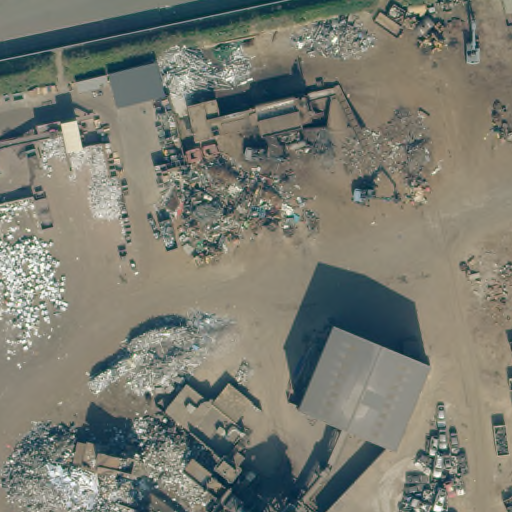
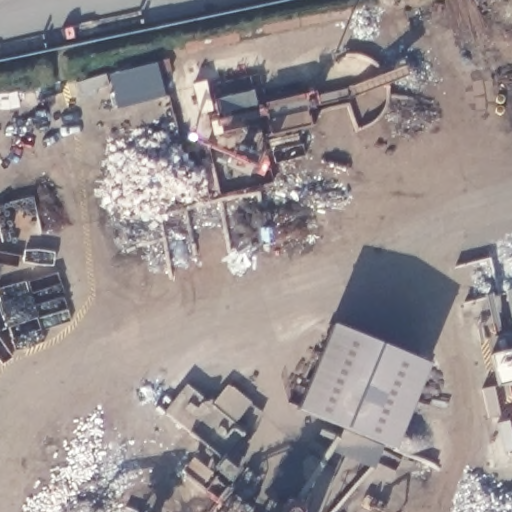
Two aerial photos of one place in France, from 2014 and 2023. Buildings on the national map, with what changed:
unchanged [(325,324),(429,365),(396,450),(292,409),(325,324)]
unchanged [(235,469),(222,458),(164,410),(185,383),(244,431),(232,446),(244,457),(235,469)]

